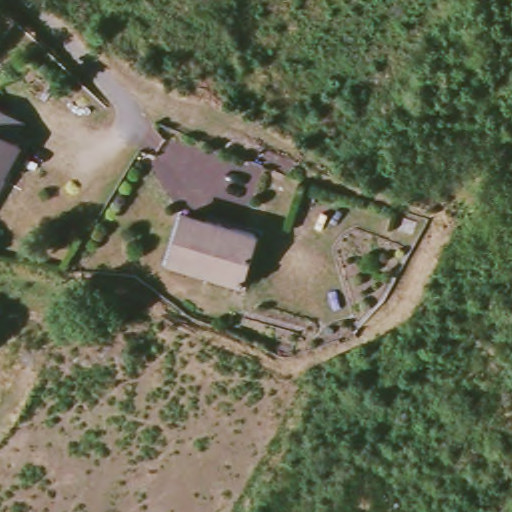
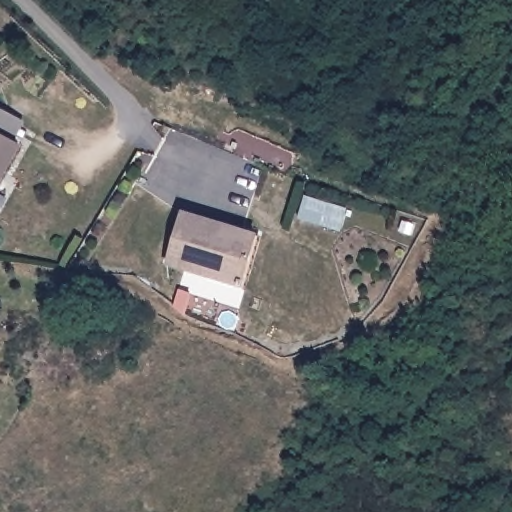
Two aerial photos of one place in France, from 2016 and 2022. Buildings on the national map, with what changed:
unchanged [(237,277),(233,287),(203,278),(198,273),(162,262),(177,215),(210,225),(211,223),(250,235),(237,277)]

